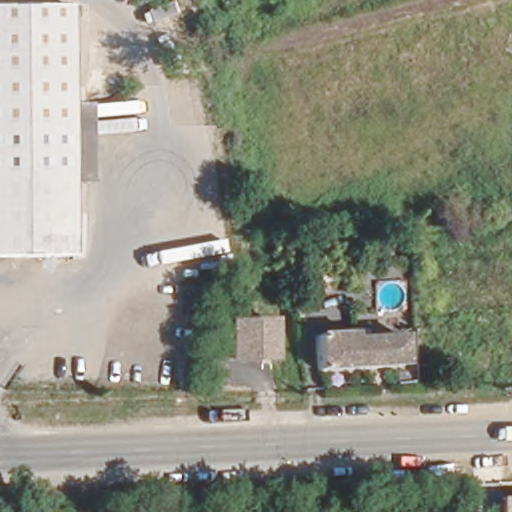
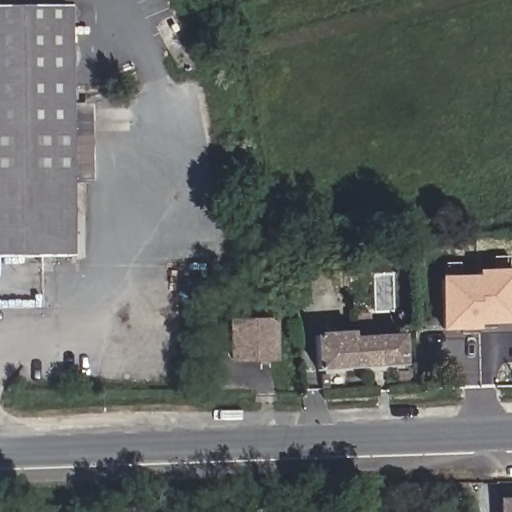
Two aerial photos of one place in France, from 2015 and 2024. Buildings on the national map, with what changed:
unchanged [(0,257),(0,7),(70,7),(71,103),(72,184),(72,257),(0,257)]
unchanged [(71,103),(87,103),(88,183),(72,184),(71,103)]
demolished [(483,282),(483,231),(512,231),(512,282),(483,282)]
new [(441,331),(438,277),(477,277),(477,271),(512,269),(512,324),(478,326),(478,330),(441,331)]
unchanged [(272,322),(273,360),(232,361),(230,324),(272,322)]
unchanged [(327,369),(327,334),(363,332),(362,367),(327,369)]
unchanged [(363,332),(364,338),(413,336),(415,365),(362,367),(363,332)]
unchanged [(498,498),(512,497),(512,512),(498,512),(498,498)]

